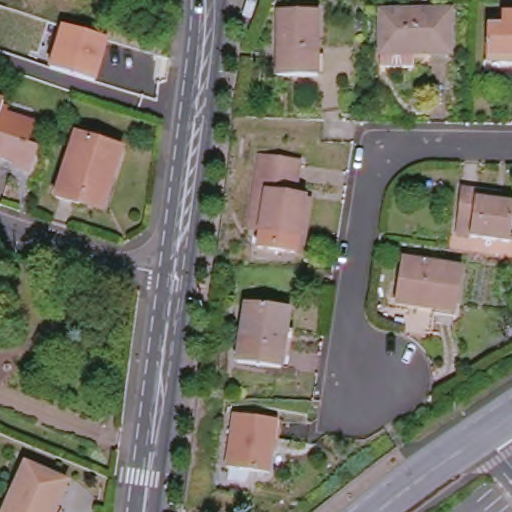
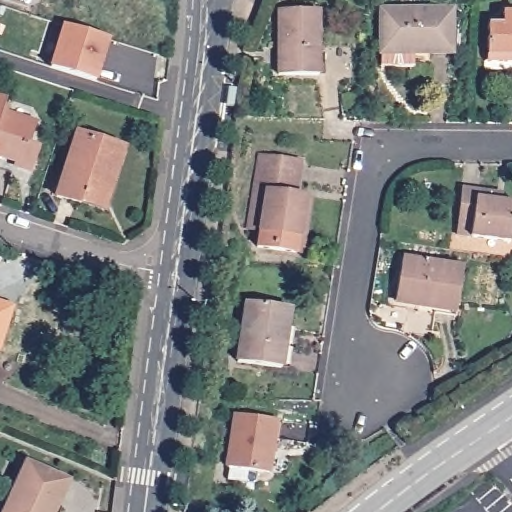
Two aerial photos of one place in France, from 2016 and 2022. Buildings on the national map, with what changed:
unchanged [(318,76),(278,75),(278,9),(319,10),(318,76)]
unchanged [(451,12),(450,54),(380,55),(381,11),(451,12)]
unchanged [(502,25),(503,13),(512,14),(512,62),(487,61),(488,24),(502,25)]
unchanged [(108,41),(101,64),(95,83),(50,68),(56,50),(64,27),(108,41)]
unchanged [(0,102),(3,103),(0,113),(0,102)]
unchanged [(27,143),(32,144),(29,155),(32,158),(33,163),(31,168),(27,171),(22,172),(17,170),(15,166),(15,162),(0,158),(0,113),(33,123),(27,143)]
unchanged [(103,206),(82,198),(80,204),(56,197),(76,134),(122,149),(103,206)]
unchanged [(256,154),(296,160),(292,184),(287,184),(286,196),(302,198),(291,252),(255,246),(257,229),(245,227),(250,192),(256,154)]
unchanged [(458,223),(463,188),(498,193),(496,201),(512,204),(512,231),(510,242),(471,237),(456,235),(458,223)]
unchanged [(457,312),(396,301),(402,259),(465,269),(457,312)]
unchanged [(291,309),(287,328),(283,327),(280,344),(285,345),(281,368),(238,361),(247,302),(291,309)]
new [(0,351),(0,303),(13,307),(0,351)]
unchanged [(232,479),(235,467),(232,467),(239,414),(283,420),(274,473),(253,470),(251,482),(232,479)]
unchanged [(4,512),(26,462),(68,481),(55,512),(4,512)]

